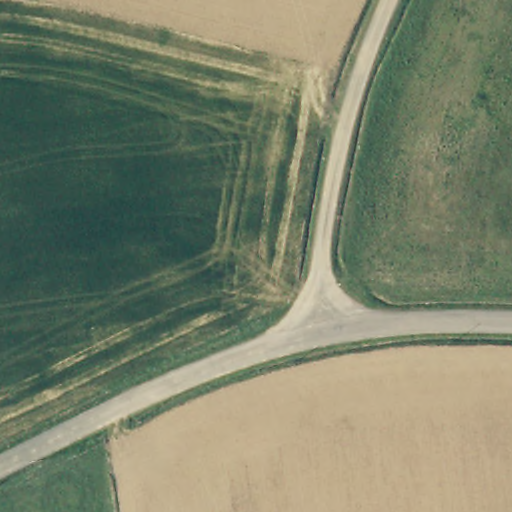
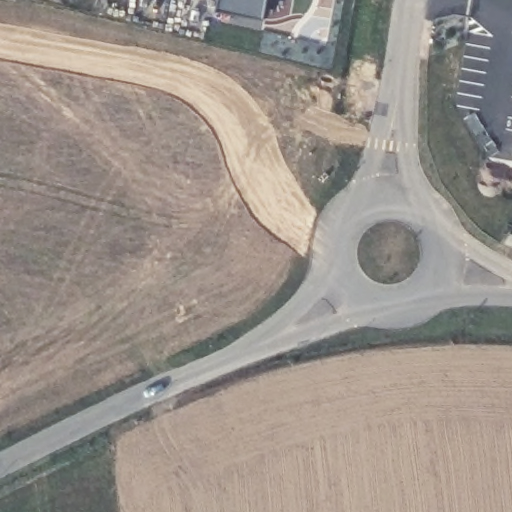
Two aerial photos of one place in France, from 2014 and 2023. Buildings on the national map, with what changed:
new [(218,10),(220,0),(268,0),(265,19),(218,10)]

